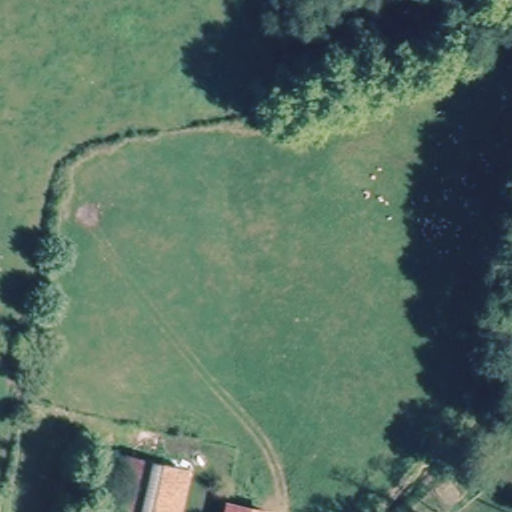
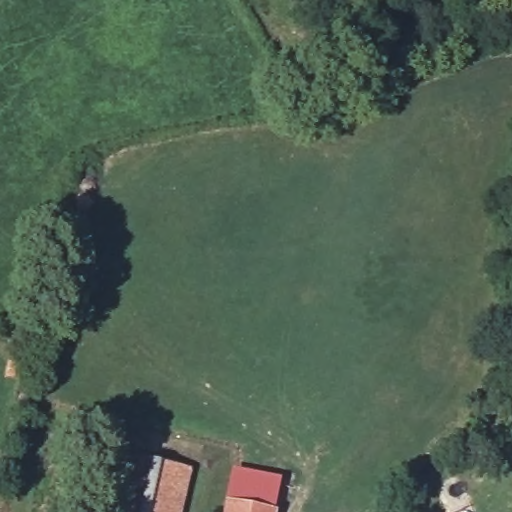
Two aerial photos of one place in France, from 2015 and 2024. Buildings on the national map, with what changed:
unchanged [(113,512),(125,455),(190,472),(180,512),(113,512)]
new [(232,465),(282,477),(274,511),(224,501),(232,465)]
unchanged [(276,512),(222,512),(224,501),(276,512)]

